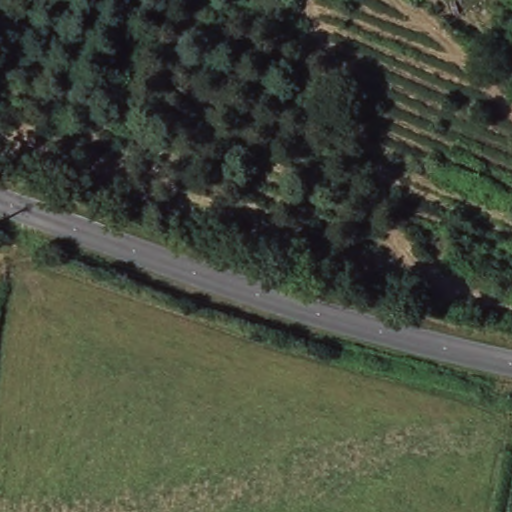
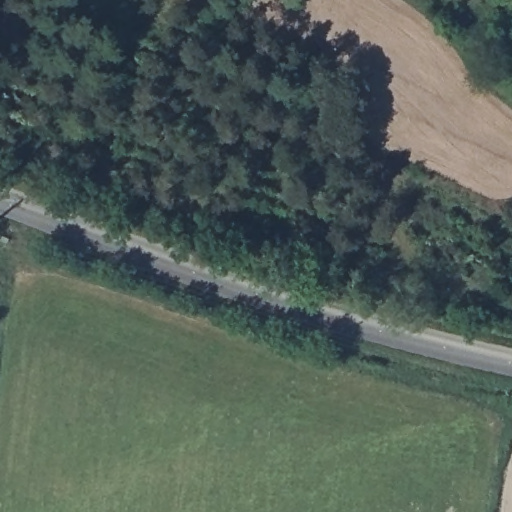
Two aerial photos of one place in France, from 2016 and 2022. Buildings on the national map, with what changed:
[]

